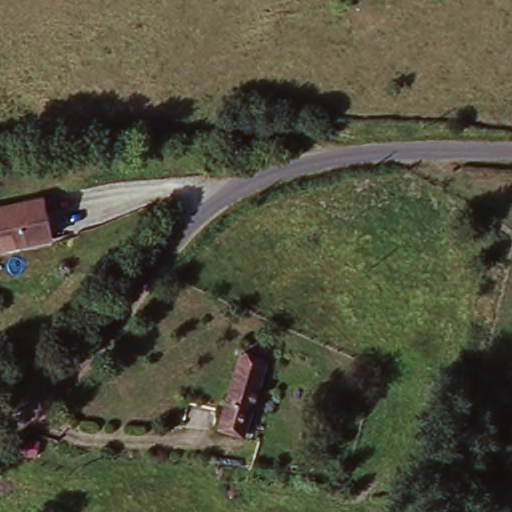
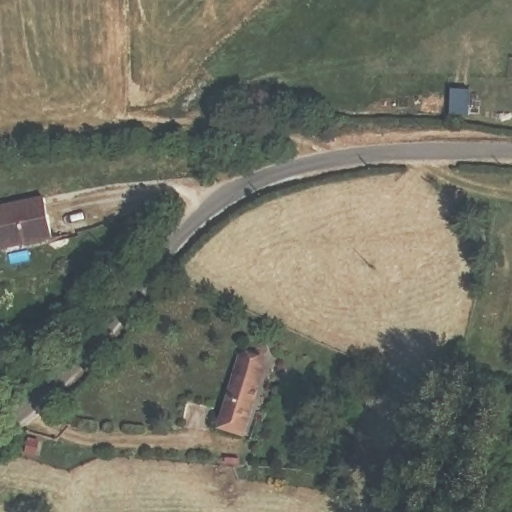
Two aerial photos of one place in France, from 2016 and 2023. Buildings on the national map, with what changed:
unchanged [(43,202),(52,243),(0,254),(0,212),(43,202)]
unchanged [(240,358),(267,365),(246,434),(220,426),(240,358)]

